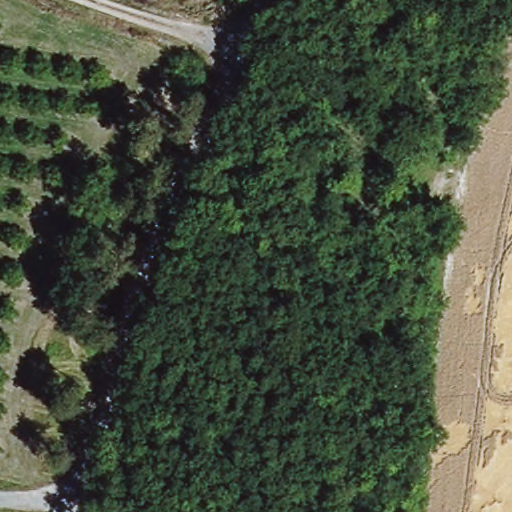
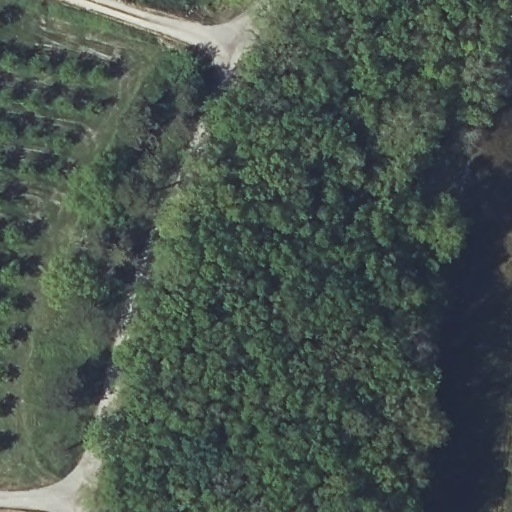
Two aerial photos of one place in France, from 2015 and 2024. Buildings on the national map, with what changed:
[]

